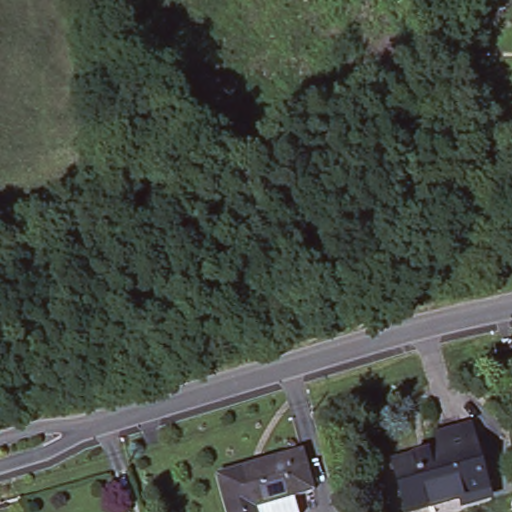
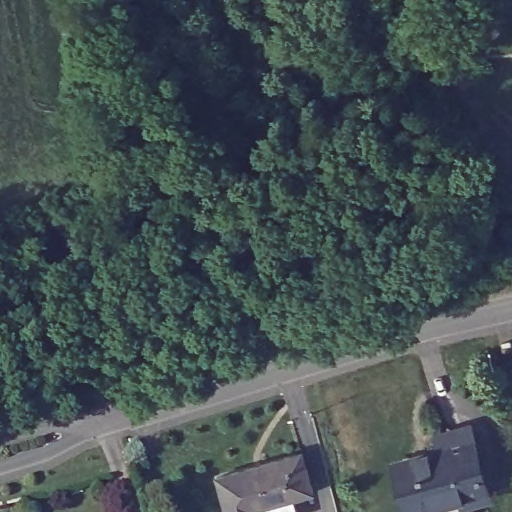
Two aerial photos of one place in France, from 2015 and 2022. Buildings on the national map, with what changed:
unchanged [(442,65),(457,56),(467,70),(452,80),(442,65)]
unchanged [(441,453),(437,438),(467,430),(485,499),(460,506),(457,498),(408,512),(406,512),(394,465),(441,453)]
unchanged [(300,449),(311,488),(290,494),(295,512),(226,512),(215,473),(300,449)]

